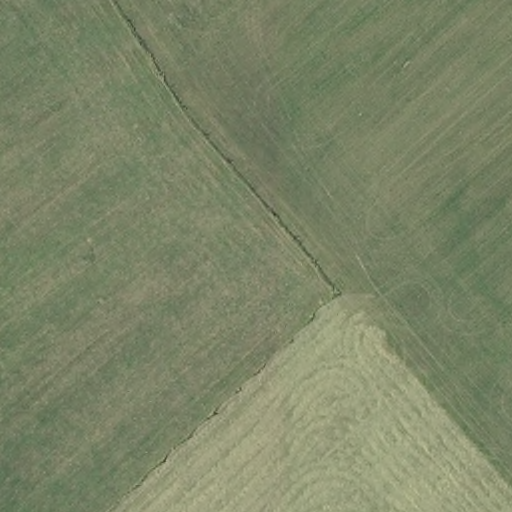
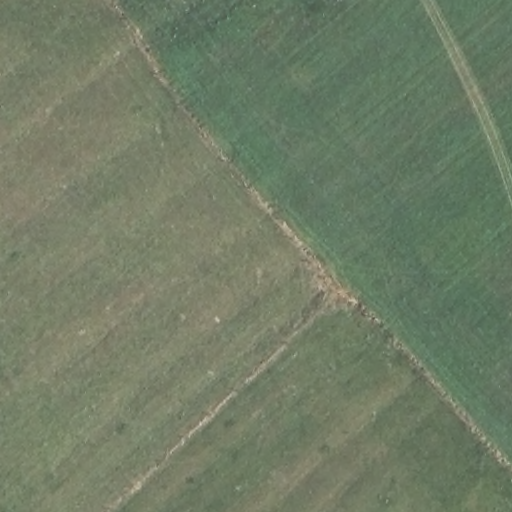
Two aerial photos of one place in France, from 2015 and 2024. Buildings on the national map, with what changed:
[]

